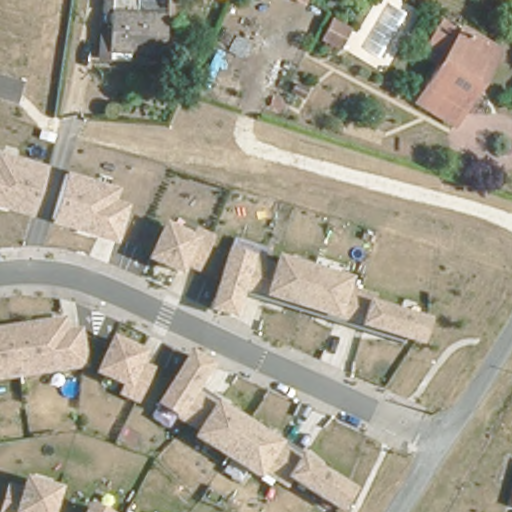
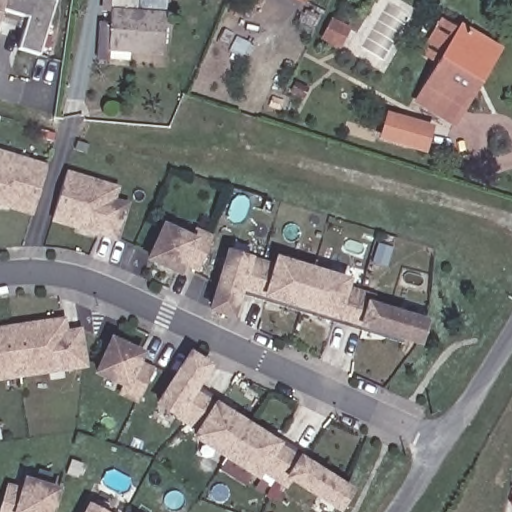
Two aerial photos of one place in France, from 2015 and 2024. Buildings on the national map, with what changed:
new [(37,54),(18,49),(27,18),(2,10),(0,15),(0,0),(54,0),(37,54)]
unchanged [(129,48),(128,59),(106,58),(106,45),(105,45),(109,0),(133,0),(133,9),(148,10),(149,0),(164,0),(162,51),(129,48)]
unchanged [(411,100),(435,60),(418,50),(434,23),(451,33),(454,29),(486,49),(493,54),(469,92),(450,124),(411,100)]
unchanged [(305,46),(314,30),(332,40),(321,57),(305,46)]
new [(426,154),(377,139),(386,112),(433,125),(426,154)]
unchanged [(48,164),(32,216),(0,206),(0,151),(48,164)]
unchanged [(121,186),(117,197),(132,201),(119,241),(50,222),(67,170),(121,186)]
unchanged [(191,234),(194,226),(215,236),(197,270),(186,264),(181,275),(145,260),(162,221),(191,234)]
unchanged [(273,260),(275,256),(352,278),(351,286),(377,294),(377,304),(432,318),(423,346),(361,328),(338,321),(263,298),(243,293),(236,320),(207,312),(226,248),(254,255),(273,260)]
unchanged [(69,328),(81,326),(88,367),(0,380),(0,326),(67,316),(69,328)]
unchanged [(142,364),(155,369),(137,404),(122,398),(127,390),(91,374),(110,335),(147,351),(142,364)]
unchanged [(339,512),(292,483),(286,490),(263,474),(259,482),(192,440),(197,432),(177,419),(154,404),(190,351),(214,363),(197,390),(216,401),(282,443),(303,456),(357,488),(342,512),(339,512)]
unchanged [(0,512),(0,499),(5,482),(20,486),(23,476),(62,487),(55,512),(0,512)]
unchanged [(512,502),(507,500),(512,484),(512,502)]
unchanged [(107,512),(82,512),(87,503),(107,512)]

